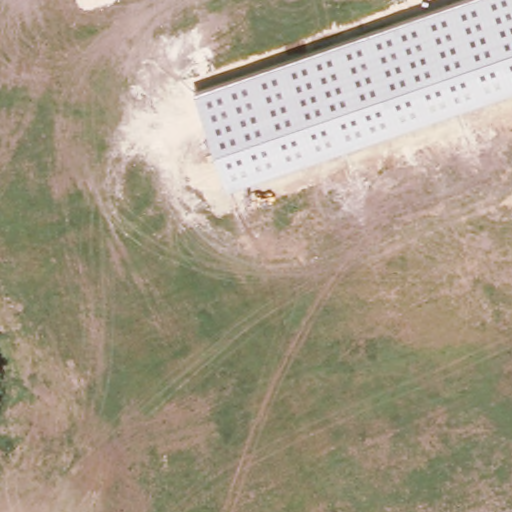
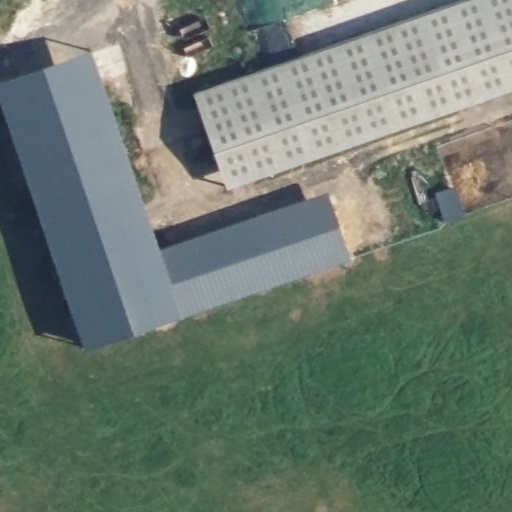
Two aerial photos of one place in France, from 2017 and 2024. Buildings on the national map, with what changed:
unchanged [(512,89),(227,189),(194,94),(460,0),(512,0),(512,89)]
new [(159,247),(180,315),(85,347),(0,100),(0,80),(91,49),(159,247)]
new [(159,247),(325,191),(351,257),(180,315),(159,247)]

